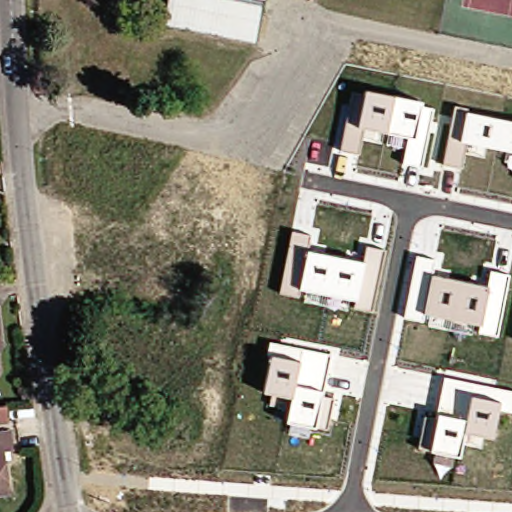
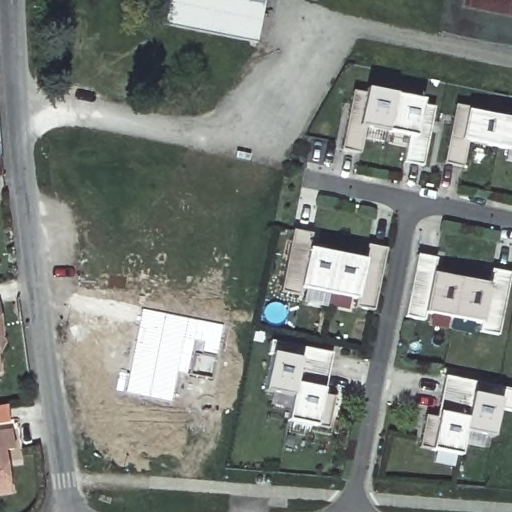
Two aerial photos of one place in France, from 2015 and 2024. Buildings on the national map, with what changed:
unchanged [(255,0),(247,43),(154,25),(159,0),(255,0)]
unchanged [(345,117),(357,120),(363,91),(421,102),(420,107),(432,110),(421,167),(402,163),(407,135),(362,127),(357,154),(338,149),(345,117)]
unchanged [(467,107),(467,112),(512,121),(512,153),(465,143),(459,167),(442,162),(454,105),(467,107)]
unchanged [(291,230),(310,233),(306,251),(363,261),(366,247),(382,250),(372,312),(353,308),(353,301),(300,291),(297,298),(278,293),(291,230)]
unchanged [(416,255),(433,258),(431,275),(487,285),(488,270),(508,274),(497,337),(476,333),(477,323),(425,312),(422,322),(403,317),(416,255)]
new [(217,356),(192,351),(187,374),(176,372),(171,402),(126,393),(140,308),(221,326),(217,356)]
unchanged [(329,352),(321,395),(332,397),(327,430),(285,422),(289,397),(262,391),(267,341),(329,352)]
unchanged [(512,412),(497,409),(492,437),(461,432),(457,456),(418,448),(422,418),(435,418),(443,376),(512,389),(512,412)]
unchanged [(6,432),(9,450),(0,451),(0,432),(6,432)]
unchanged [(0,493),(0,455),(4,482),(6,492),(0,493)]

